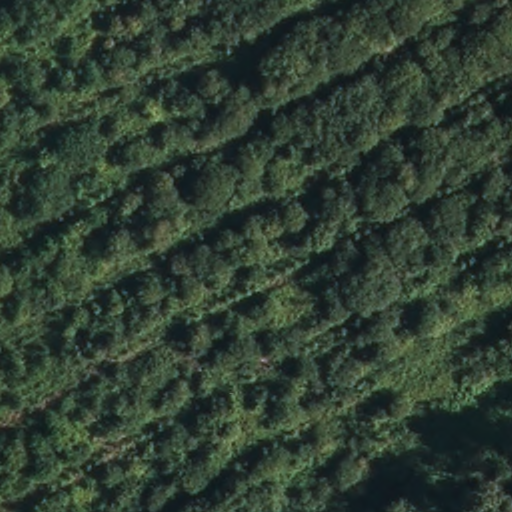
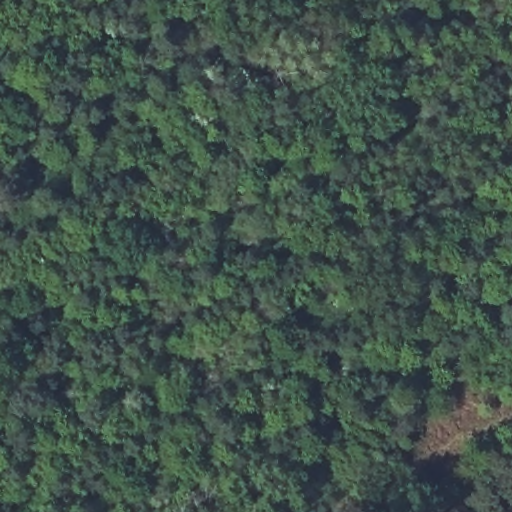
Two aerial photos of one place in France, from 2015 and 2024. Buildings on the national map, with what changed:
[]

